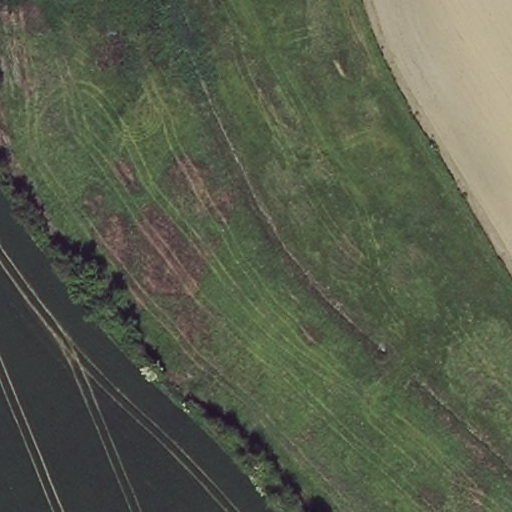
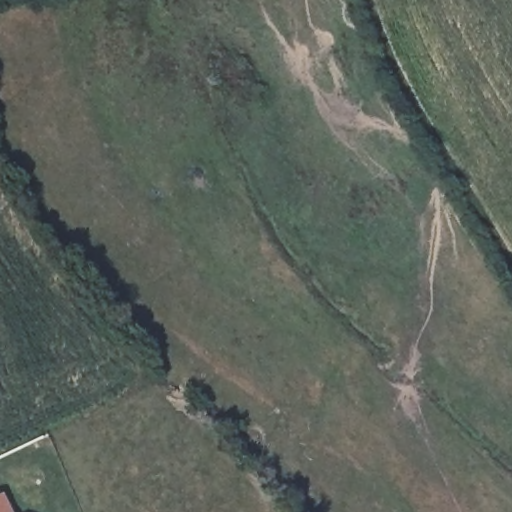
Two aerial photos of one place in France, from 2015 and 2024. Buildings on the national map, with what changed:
new [(12,512),(0,512),(0,496),(4,495),(12,512)]

